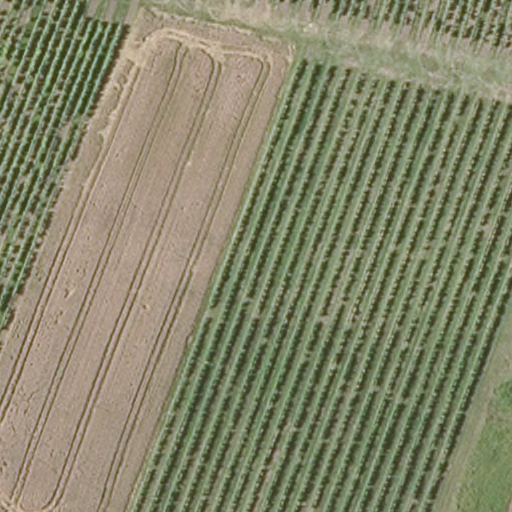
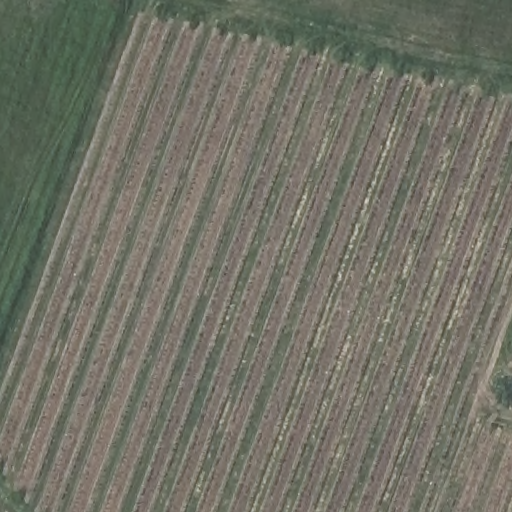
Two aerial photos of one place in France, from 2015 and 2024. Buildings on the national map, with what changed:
[]

